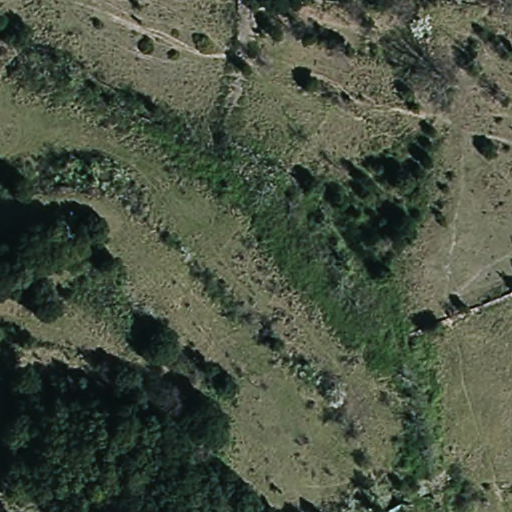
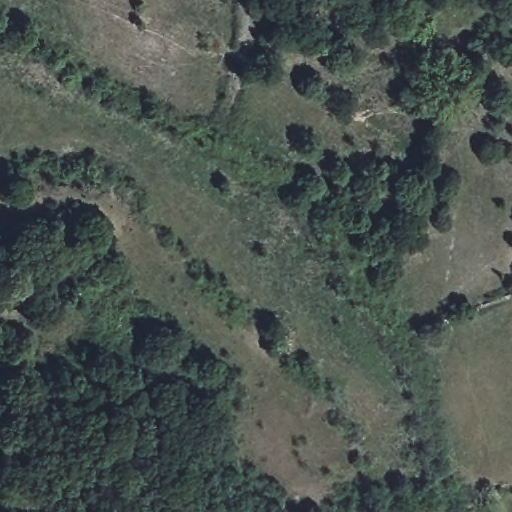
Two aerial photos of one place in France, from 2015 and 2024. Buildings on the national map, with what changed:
[]

